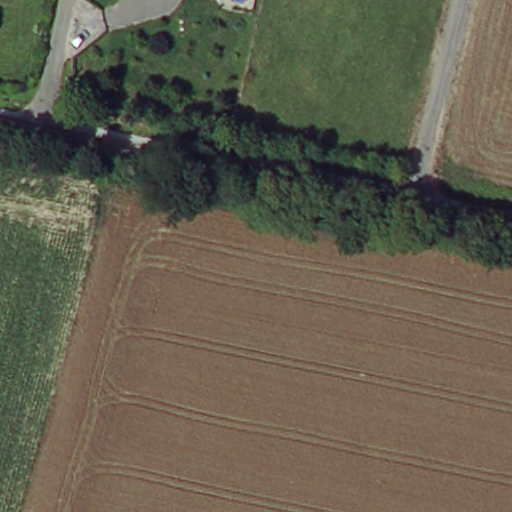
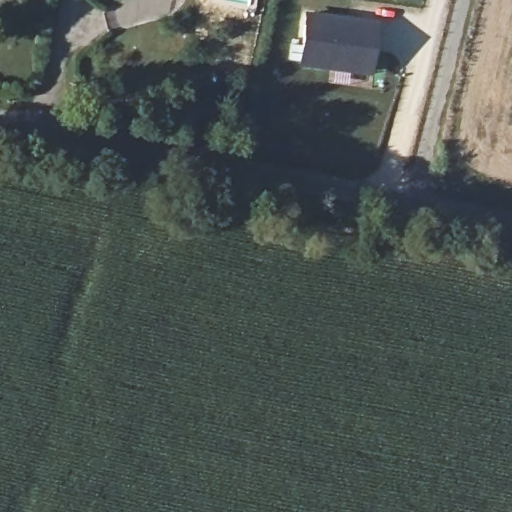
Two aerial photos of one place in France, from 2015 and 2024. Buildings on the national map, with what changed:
new [(377,9),(373,61),(299,56),(302,5),(377,9)]

